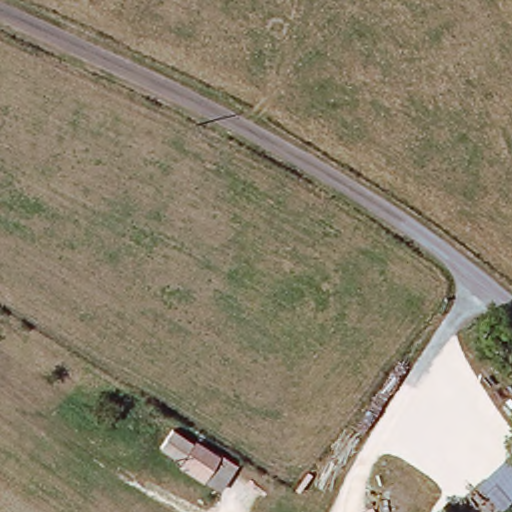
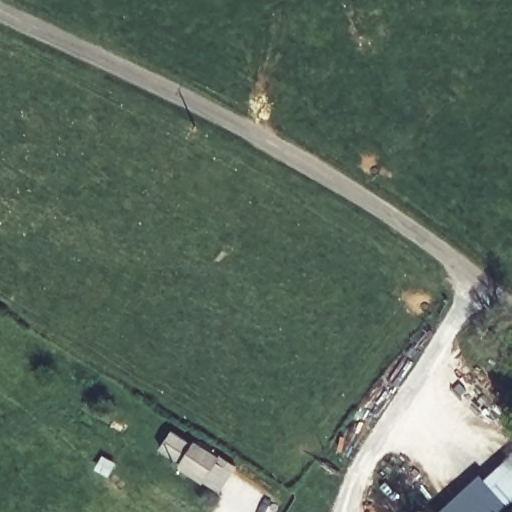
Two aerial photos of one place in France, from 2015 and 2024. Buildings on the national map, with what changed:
unchanged [(217,486),(192,469),(195,467),(174,452),(178,446),(185,436),(230,466),(225,474),(217,486)]
new [(485,479),(512,454),(512,499),(499,512),(438,512),(480,474),(485,479)]

